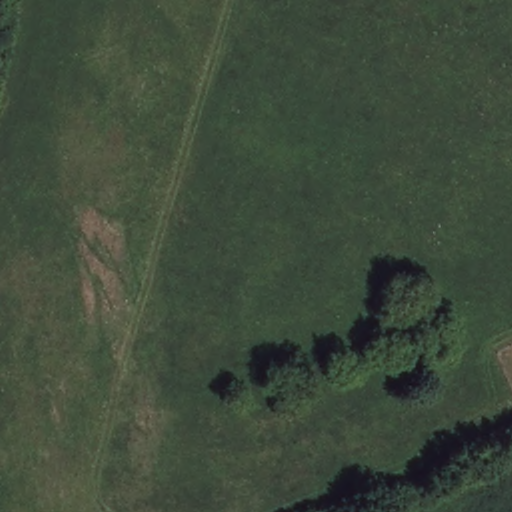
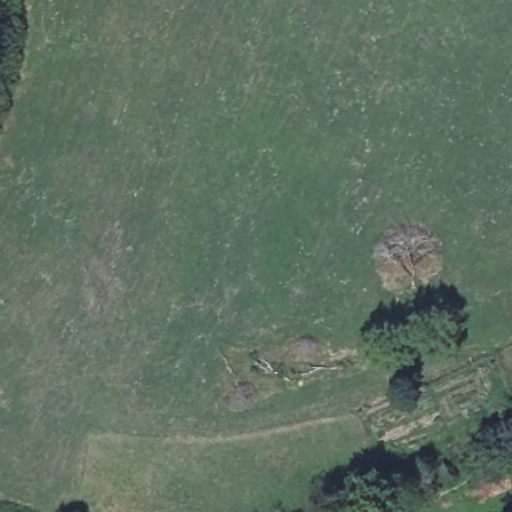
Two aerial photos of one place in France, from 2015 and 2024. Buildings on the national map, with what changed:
[]

